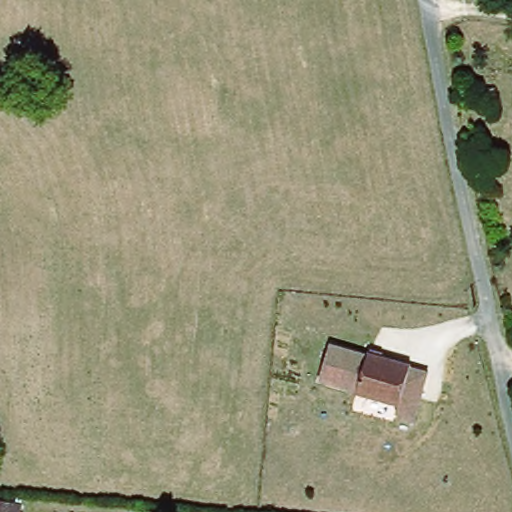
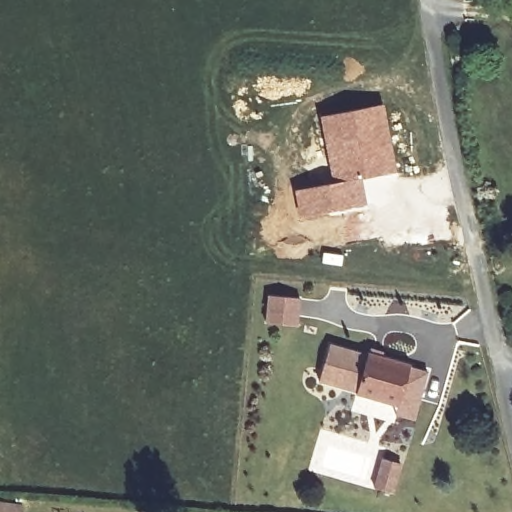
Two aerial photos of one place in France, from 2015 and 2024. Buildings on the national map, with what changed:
new [(384,104),(397,172),(362,178),(331,182),(319,115),(384,104)]
new [(331,182),(362,178),(367,206),(299,218),(293,190),(331,182)]
new [(268,297),(300,300),(298,328),(266,325),(268,297)]
unchanged [(330,344),(429,369),(415,421),(394,416),(397,404),(320,384),(330,344)]
new [(381,460),(401,466),(396,483),(393,493),(374,487),(376,478),(381,460)]
new [(23,503),(22,512),(0,512),(0,500),(23,503)]

